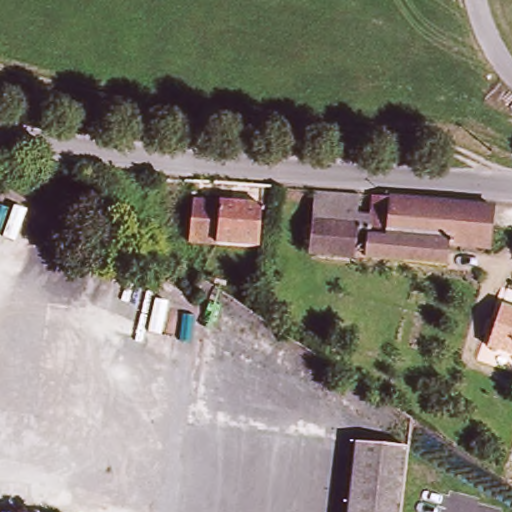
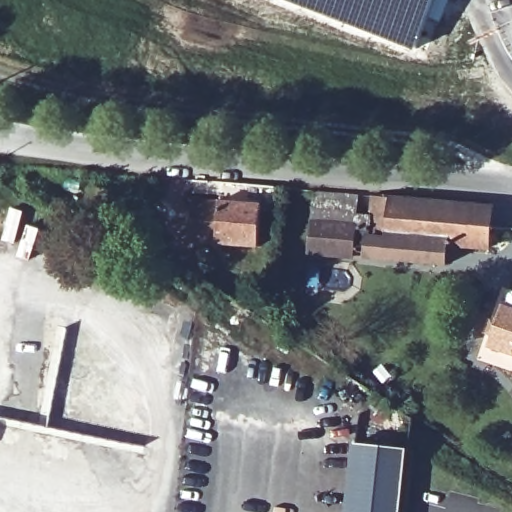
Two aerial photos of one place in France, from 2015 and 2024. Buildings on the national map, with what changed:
new [(415,51),(285,0),(437,0),(436,2),(415,51)]
unchanged [(365,201),(363,222),(360,262),(307,257),(312,207),(323,209),(325,197),(365,201)]
unchanged [(258,249),(189,242),(194,200),(261,207),(273,207),(267,250),(258,249)]
unchanged [(363,222),(376,223),(378,202),(498,212),(494,254),(455,250),(453,270),(360,262),(363,222)]
unchanged [(489,349),(503,307),(512,310),(512,357),(489,349)]
unchanged [(402,512),(349,512),(357,443),(410,450),(402,512)]

